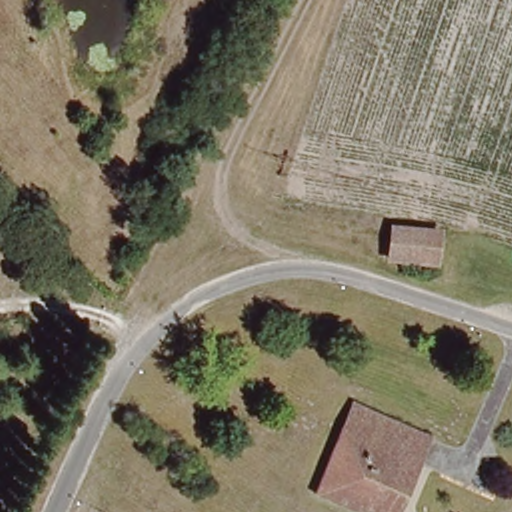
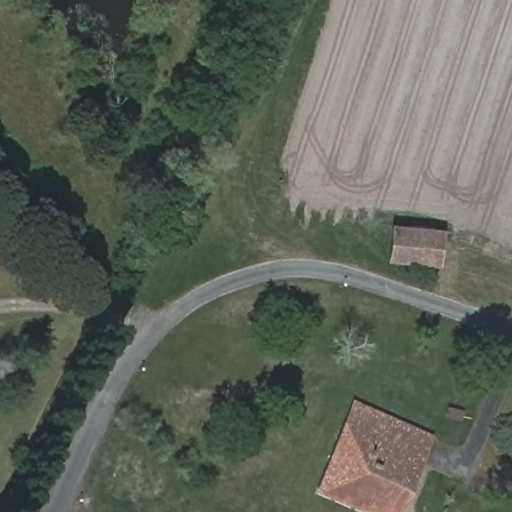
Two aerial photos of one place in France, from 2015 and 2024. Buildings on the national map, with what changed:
unchanged [(392,222),(447,231),(442,271),(387,260),(392,222)]
unchanged [(318,496),(357,404),(432,437),(421,465),(401,456),(376,512),(356,512),(318,496)]
unchanged [(401,456),(421,465),(400,512),(376,512),(401,456)]

